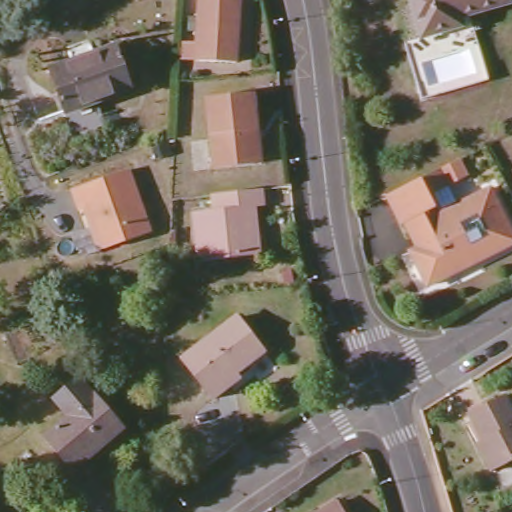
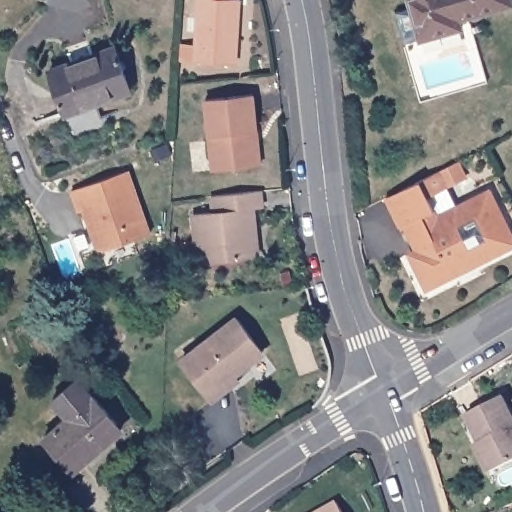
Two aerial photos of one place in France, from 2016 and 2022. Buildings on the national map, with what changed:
unchanged [(198,62),(202,0),(241,0),(238,64),(198,62)]
unchanged [(456,30),(420,40),(408,0),(509,0),(511,7),(454,23),(456,30)]
unchanged [(52,72),(75,63),(70,50),(94,41),(99,54),(118,47),(134,91),(68,116),(52,72)]
unchanged [(217,165),(207,94),(255,89),(260,126),(263,160),(256,161),(217,165)]
unchanged [(92,207),(82,210),(75,189),(132,170),(153,233),(107,248),(98,243),(93,226),(96,220),(92,207)]
unchanged [(417,249),(405,225),(402,227),(387,197),(434,174),(439,172),(447,187),(442,190),(428,197),(438,215),(490,190),(512,233),(512,246),(480,262),(478,257),(450,271),(452,276),(427,288),(414,262),(410,253),(417,249)]
unchanged [(198,260),(192,213),(212,210),(212,195),(257,190),(259,206),(252,207),(253,225),(257,253),(250,254),(198,260)]
unchanged [(240,379),(213,399),(183,358),(240,318),(264,352),(235,373),(240,379)]
unchanged [(74,470),(47,437),(71,416),(56,399),(82,377),(124,428),(74,470)]
unchanged [(488,468),(473,440),(477,438),(464,411),(501,392),(512,413),(512,455),(488,468)]
unchanged [(348,512),(326,512),(343,503),(348,512)]

